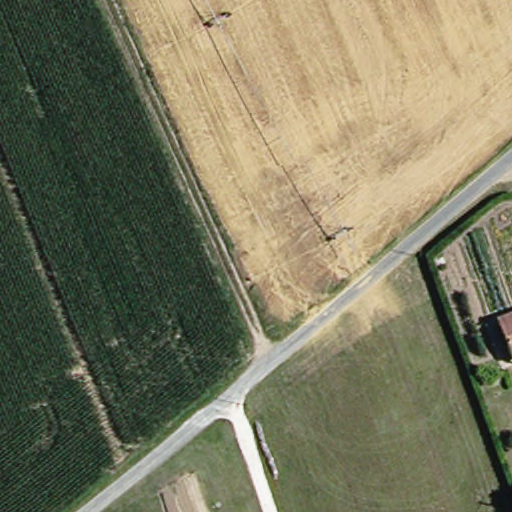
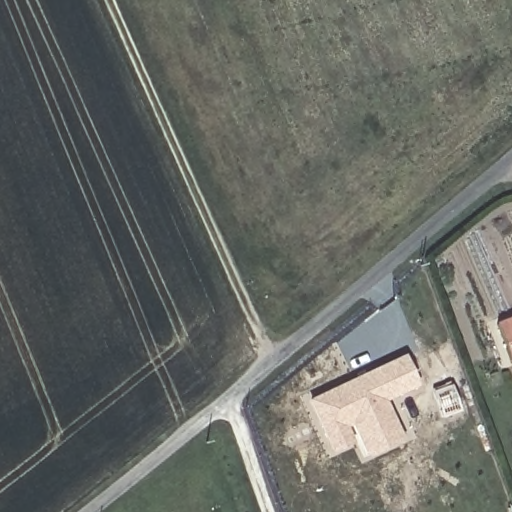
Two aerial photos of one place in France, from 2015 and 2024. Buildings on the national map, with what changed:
unchanged [(505,323),(512,320),(512,344),(505,323)]
new [(386,401),(405,440),(366,457),(351,424),(347,427),(354,443),(331,453),(308,400),(405,355),(419,386),(386,401)]

